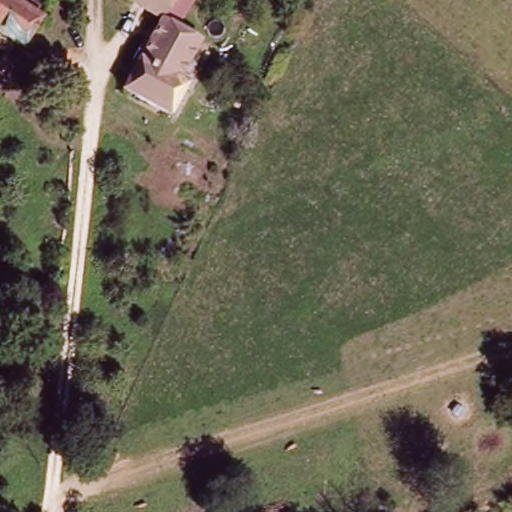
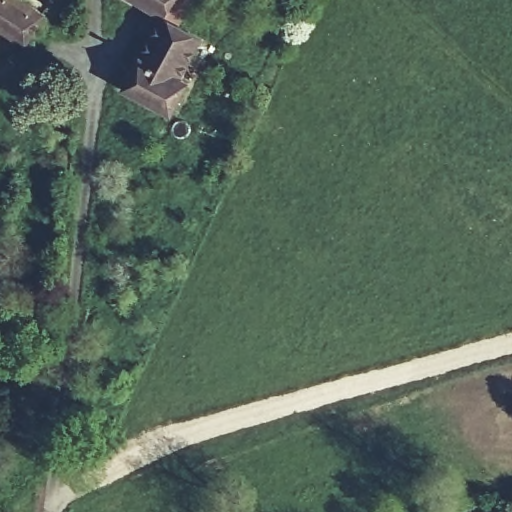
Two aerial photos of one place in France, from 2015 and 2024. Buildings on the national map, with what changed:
unchanged [(46,15),(23,48),(0,31),(0,0),(23,0),(45,14),(46,15)]
unchanged [(163,14),(140,0),(190,0),(176,23),(199,37),(178,73),(191,80),(172,111),(124,83),(163,14)]

